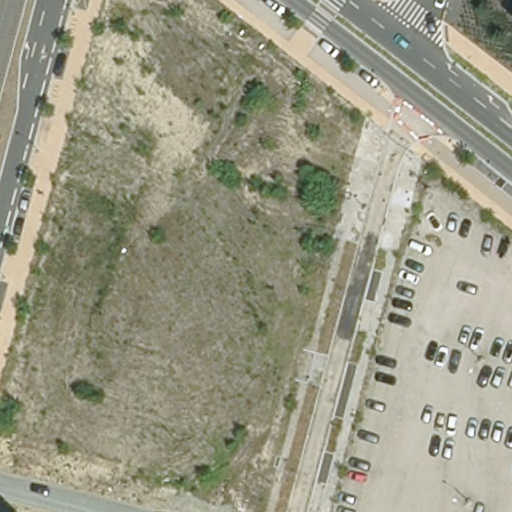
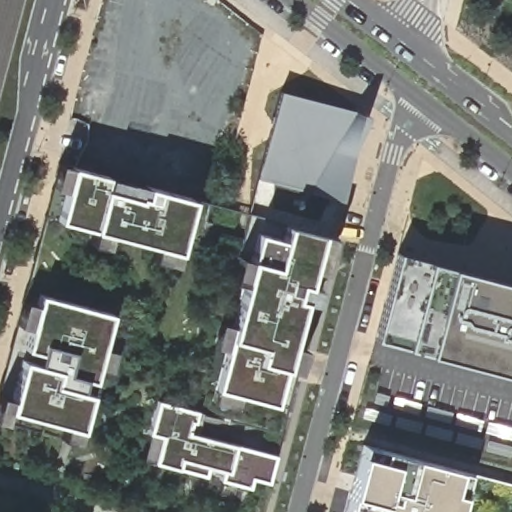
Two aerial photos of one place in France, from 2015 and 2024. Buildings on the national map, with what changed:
new [(355,110),(366,114),(355,152),(344,200),(310,190),(257,177),(280,90),(355,110)]
new [(72,165),(57,219),(179,251),(191,198),(207,202),(201,228),(241,238),(249,213),(287,224),(283,239),(257,232),(216,388),(275,403),(285,367),(320,233),(333,237),(275,454),(190,432),(195,410),(156,400),(148,432),(161,435),(154,462),(33,429),(0,420),(0,386),(60,162),(72,165)]
new [(57,219),(72,165),(191,198),(179,251),(57,219)]
new [(230,337),(257,232),(283,239),(287,224),(320,233),(285,367),(257,360),(261,345),(230,337)]
new [(427,352),(375,337),(398,252),(452,268),(512,283),(512,374),(427,352)]
new [(38,292),(110,311),(90,393),(78,390),(81,376),(65,372),(70,350),(42,342),(37,362),(20,358),(38,292)]
new [(216,388),(230,337),(261,345),(257,360),(285,367),(275,403),(216,388)]
new [(20,358),(37,362),(42,342),(70,350),(65,372),(81,376),(78,390),(90,393),(80,428),(7,409),(20,358)]
new [(148,432),(156,400),(195,410),(190,432),(275,454),(268,482),(252,478),(250,488),(154,462),(161,435),(148,432)]
new [(348,512),(366,445),(380,449),(512,485),(512,512),(348,512)]

